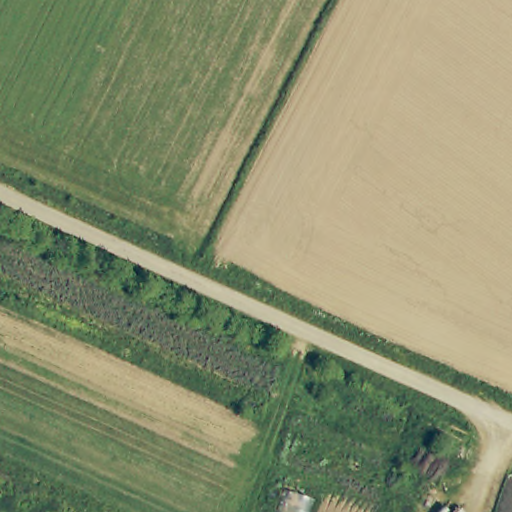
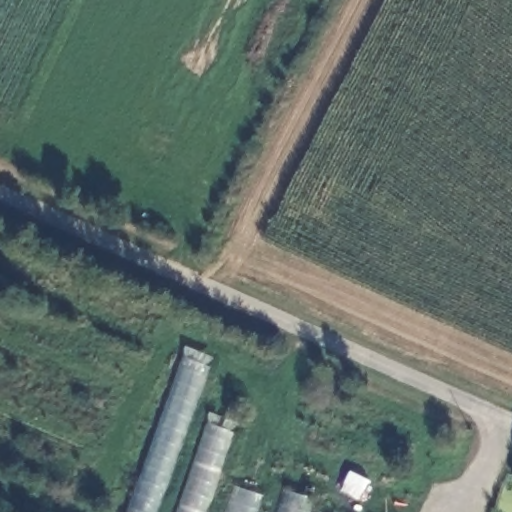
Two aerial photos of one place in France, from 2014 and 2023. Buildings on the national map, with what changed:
new [(159,512),(124,512),(180,354),(209,367),(159,512)]
new [(207,512),(173,512),(205,421),(234,432),(207,512)]
new [(232,486),(265,496),(260,512),(225,512),(232,486)]
new [(283,487),(313,497),(309,512),(275,512),(283,487)]

